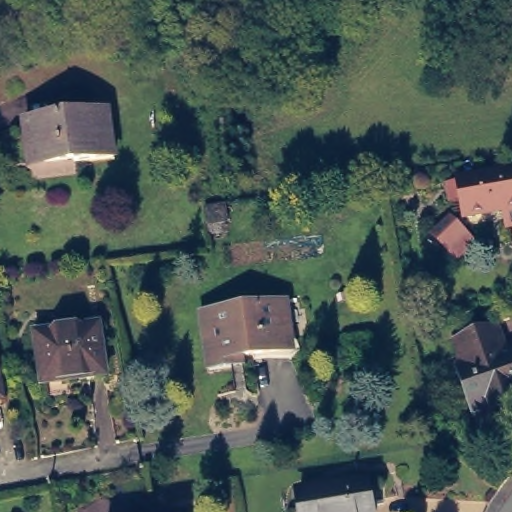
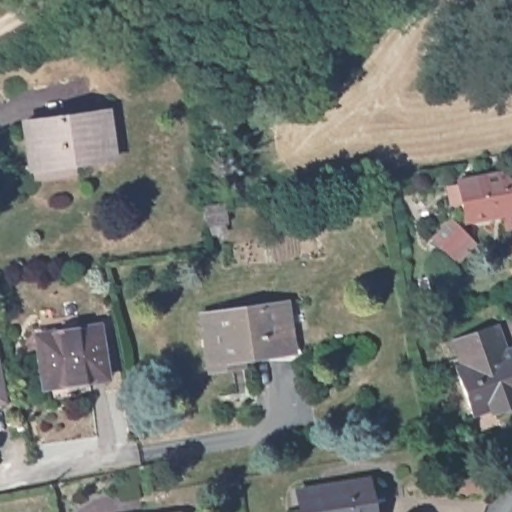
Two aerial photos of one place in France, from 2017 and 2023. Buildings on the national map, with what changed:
unchanged [(32,162),(27,119),(110,106),(117,154),(77,159),(33,165),(32,162)]
unchanged [(512,168),(512,222),(510,222),(507,209),(467,215),(464,199),(455,200),(452,181),(460,179),(460,177),(512,168)]
unchanged [(240,221),(219,225),(217,207),(237,204),(240,221)]
unchanged [(453,216),(460,223),(467,221),(469,231),(477,239),(472,244),(472,249),(465,250),(462,254),(432,239),(453,216)]
unchanged [(303,342),(253,350),(255,357),(222,362),(214,307),(296,295),(303,342)]
unchanged [(466,402),(454,366),(462,364),(452,335),(493,319),(503,349),(512,346),(512,347),(512,394),(484,404),(468,409),(466,402)]
unchanged [(101,323),(108,375),(46,383),(39,332),(101,323)]
unchanged [(306,512),(302,481),(322,478),(323,482),(368,475),(374,512),(306,512)]
unchanged [(178,512),(187,510),(187,512),(178,512)]

